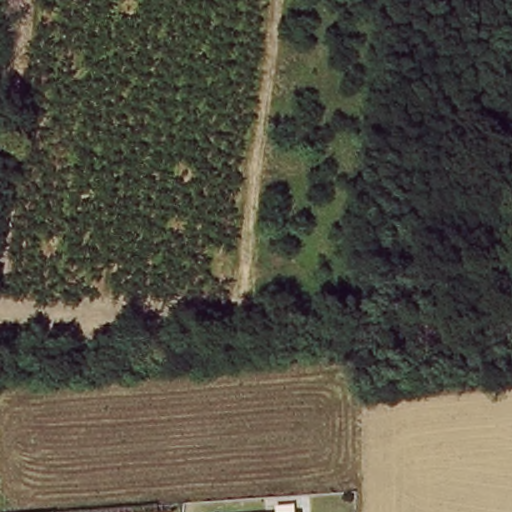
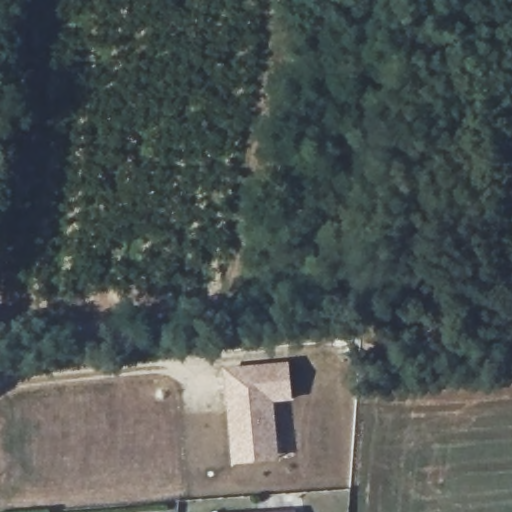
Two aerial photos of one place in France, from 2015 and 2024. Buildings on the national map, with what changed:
new [(288,360),(292,401),(274,402),(279,460),(230,465),(222,365),(288,360)]

